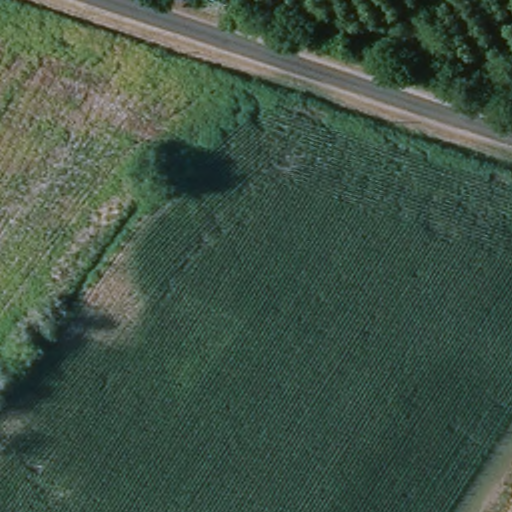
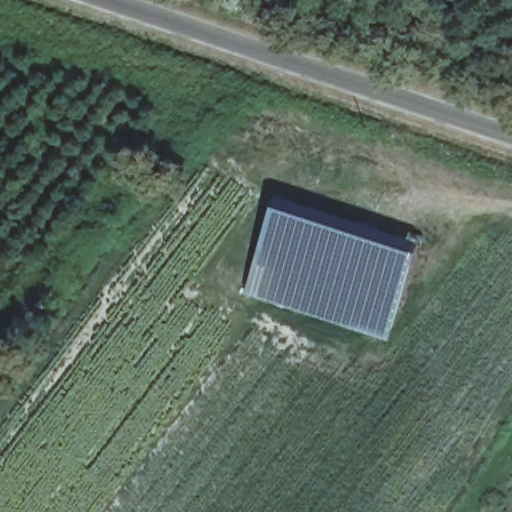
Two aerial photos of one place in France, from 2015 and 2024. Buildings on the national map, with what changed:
new [(273,207),(417,254),(389,341),(280,307),(245,295),(273,207)]

